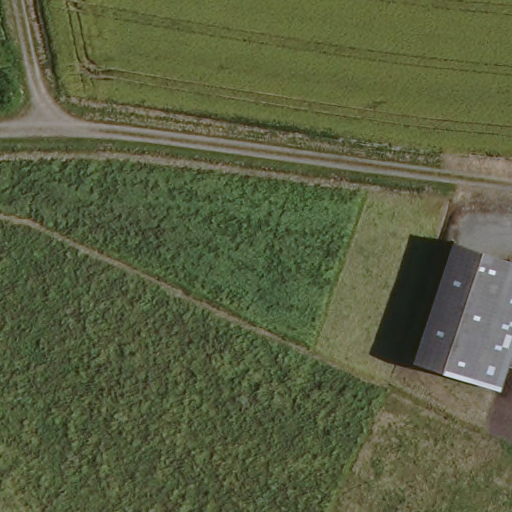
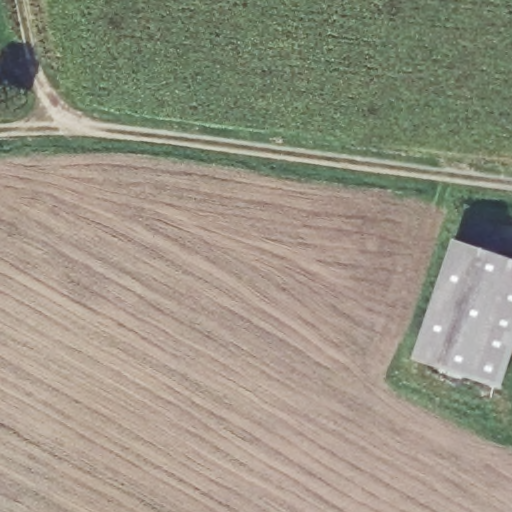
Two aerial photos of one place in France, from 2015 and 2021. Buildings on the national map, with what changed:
unchanged [(437,238),(512,263),(512,351),(494,405),(401,370),(437,238)]

